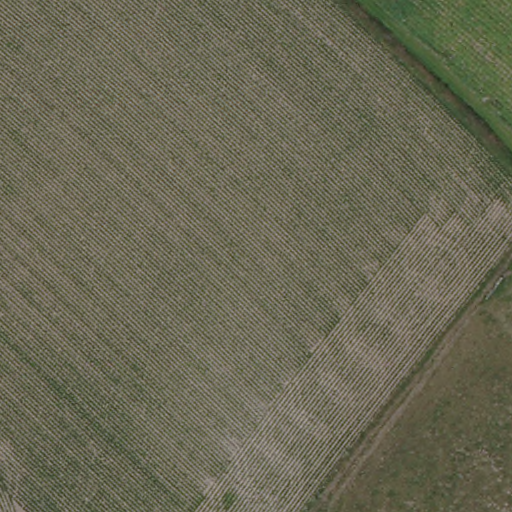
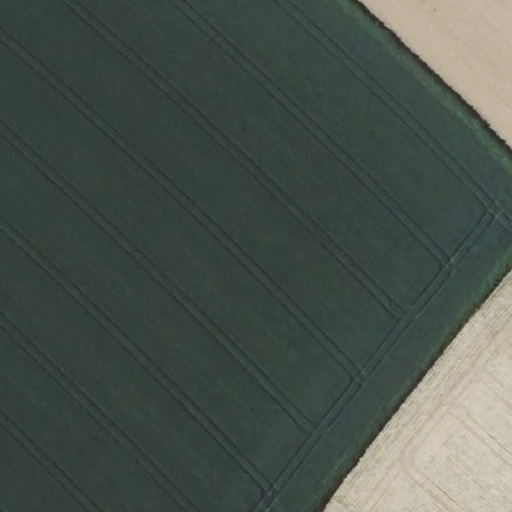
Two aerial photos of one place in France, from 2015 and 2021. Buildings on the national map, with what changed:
[]

